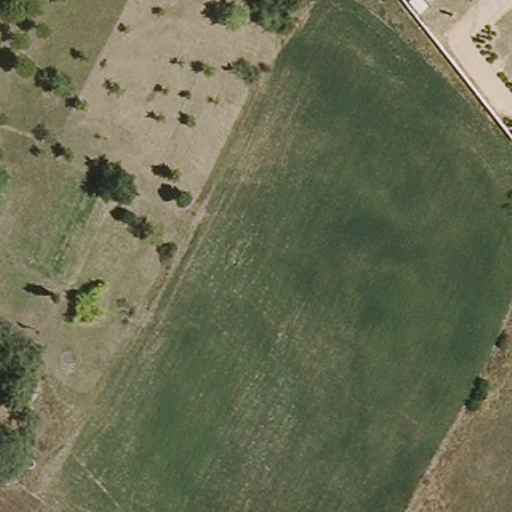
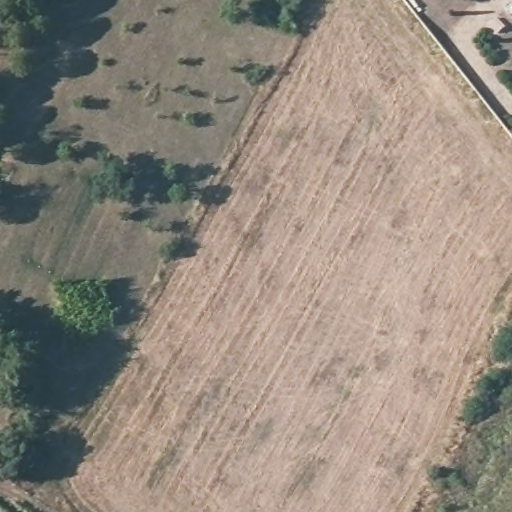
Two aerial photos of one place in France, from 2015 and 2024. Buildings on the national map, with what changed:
[]

